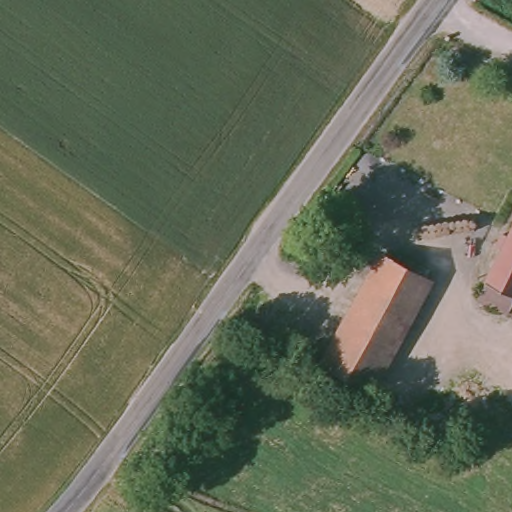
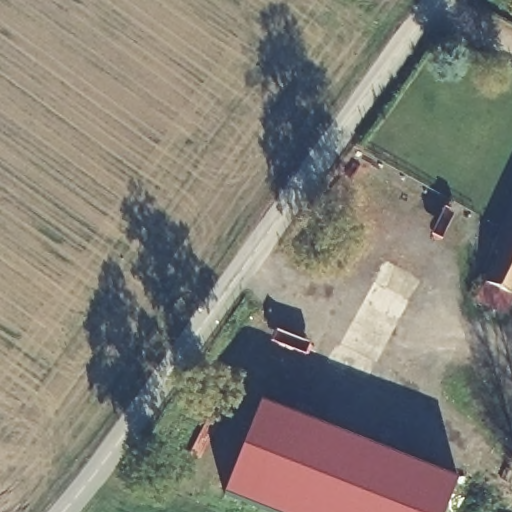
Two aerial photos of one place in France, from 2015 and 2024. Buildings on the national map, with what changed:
unchanged [(475,297),(500,249),(495,245),(502,232),(507,235),(510,230),(512,225),(512,297),(505,312),(475,297)]
new [(457,481),(445,512),(264,512),(225,496),(262,403),(457,481)]

